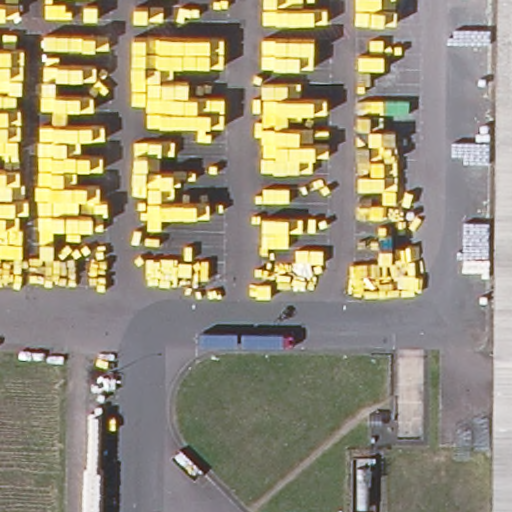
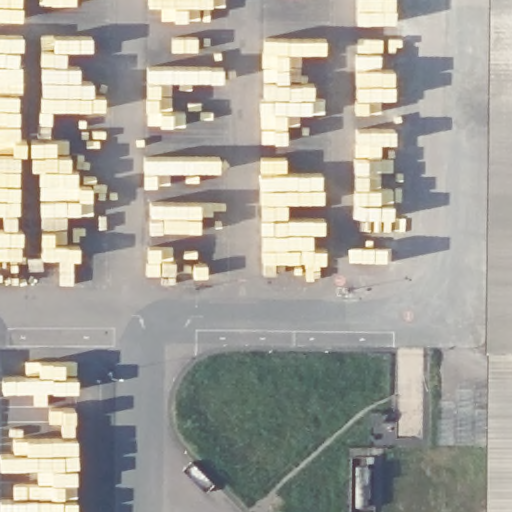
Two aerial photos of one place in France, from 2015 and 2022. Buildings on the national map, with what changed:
unchanged [(499,0),(512,0),(512,512),(493,512),(499,0)]

